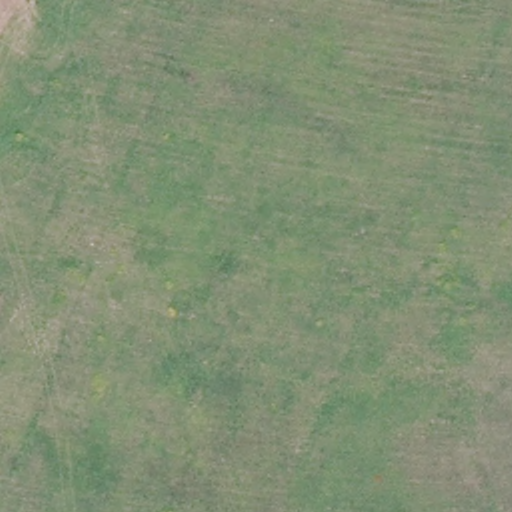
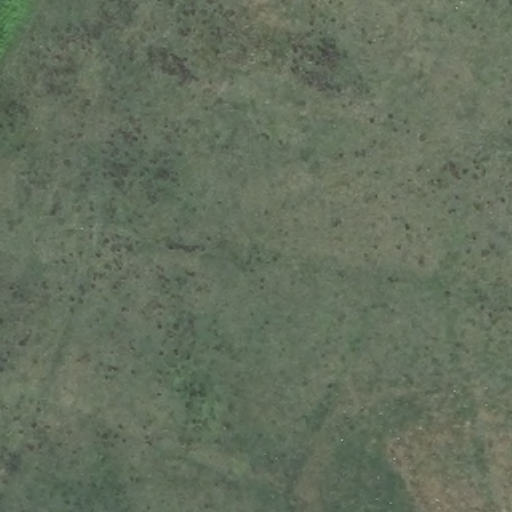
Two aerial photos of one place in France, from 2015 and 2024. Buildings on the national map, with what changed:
[]

